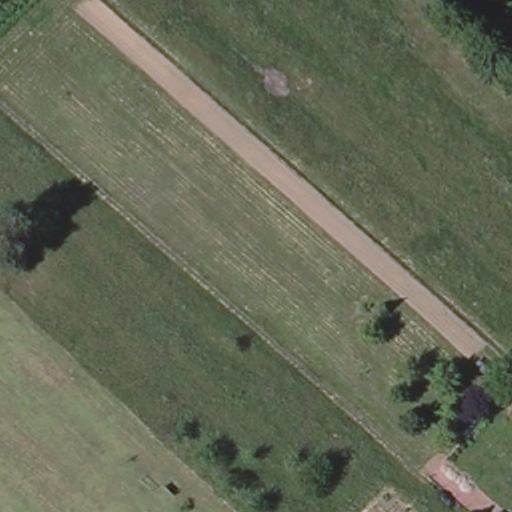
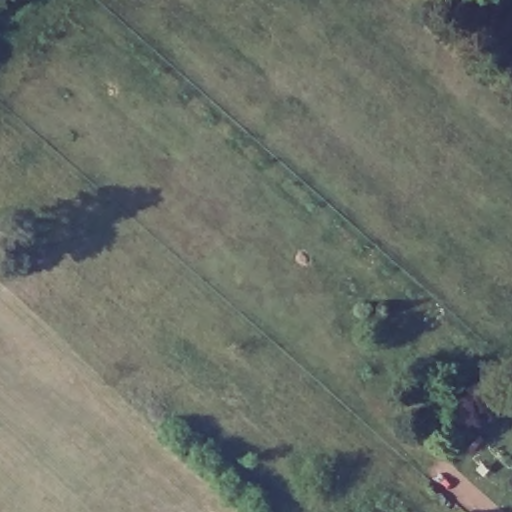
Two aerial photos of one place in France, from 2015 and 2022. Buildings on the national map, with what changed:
[]

